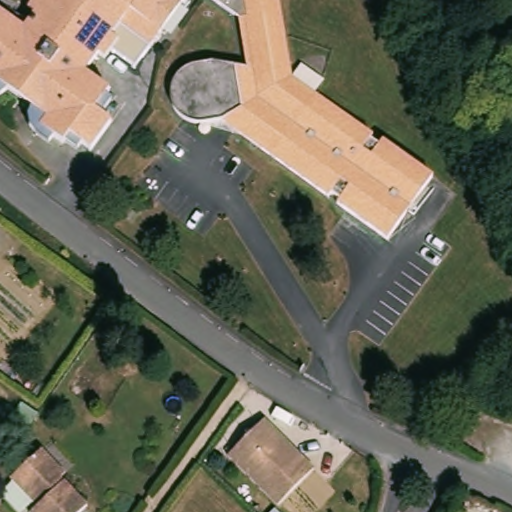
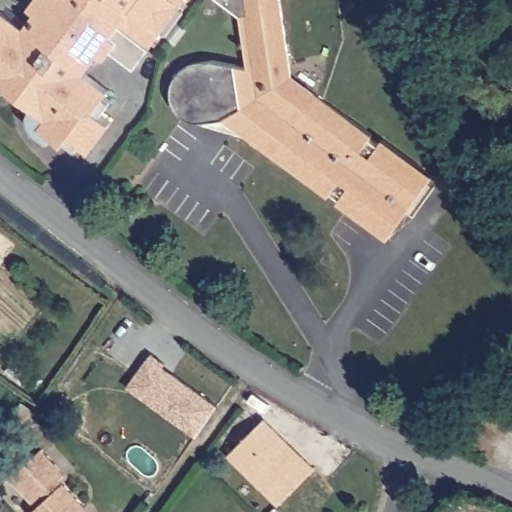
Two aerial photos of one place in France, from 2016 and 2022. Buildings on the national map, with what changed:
unchanged [(181,10),(149,51),(126,37),(116,50),(107,44),(85,74),(107,89),(94,108),(108,120),(100,134),(86,150),(71,139),(66,145),(41,126),(51,112),(0,75),(0,14),(21,31),(42,0),(187,0),(181,10)]
unchanged [(292,76),(372,135),(434,179),(387,241),(297,176),(223,125),(209,127),(202,126),(193,122),(186,117),(180,111),(176,102),(174,95),(175,89),(177,81),(181,74),(186,69),(191,65),(201,64),(211,61),(230,65),(247,66),(243,24),(240,19),(229,11),(214,0),(279,0),(292,76)]
new [(166,363),(162,367),(216,404),(195,434),(125,388),(150,353),(166,363)]
unchanged [(315,468),(277,505),(230,454),(269,419),(315,468)]
unchanged [(57,471),(84,508),(79,512),(31,512),(31,511),(38,507),(12,476),(47,448),(62,466),(57,471)]

